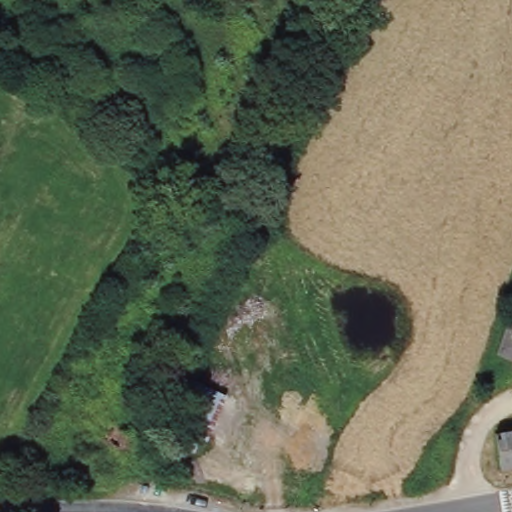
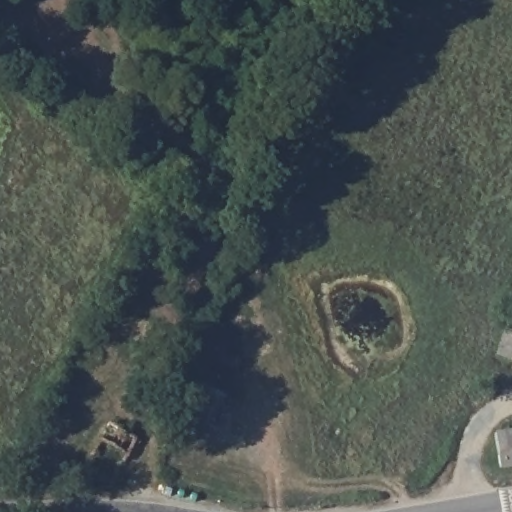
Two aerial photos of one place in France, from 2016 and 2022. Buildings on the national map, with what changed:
unchanged [(512,359),(506,357),(502,356),(512,325),(512,359)]
unchanged [(500,434),(512,432),(512,467),(505,468),(500,434)]

